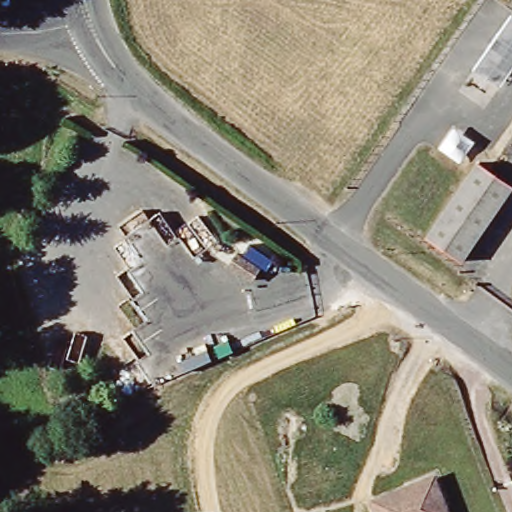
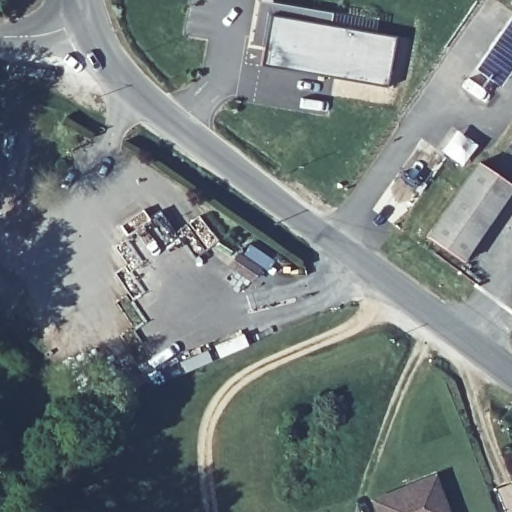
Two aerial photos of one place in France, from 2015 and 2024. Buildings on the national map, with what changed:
new [(257,0),(376,20),(374,31),(268,15),(262,47),(249,45),(257,0)]
unchanged [(511,14),(512,15),(512,65),(498,85),(473,68),(511,14)]
new [(262,47),(268,15),(374,31),(395,35),(387,86),(259,65),(262,47)]
new [(452,127),(473,141),(459,161),(438,147),(452,127)]
unchanged [(476,161),(511,185),(461,260),(426,236),(476,161)]
unchanged [(376,502),(407,491),(437,480),(439,485),(449,512),(380,512),(376,502)]

